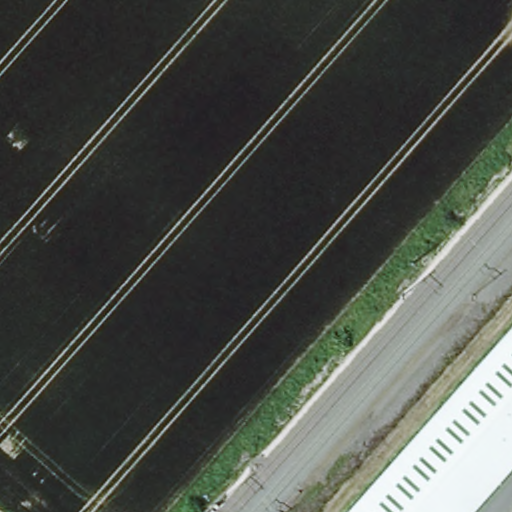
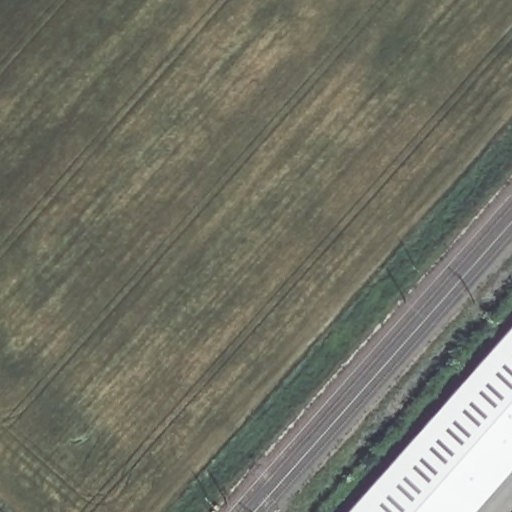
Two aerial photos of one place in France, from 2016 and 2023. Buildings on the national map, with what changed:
unchanged [(512,328),(512,407),(473,371),(512,328)]
unchanged [(512,407),(512,465),(470,512),(348,512),(473,371),(512,407)]

